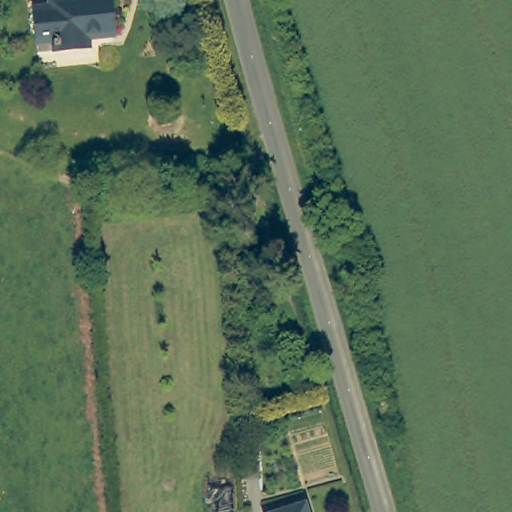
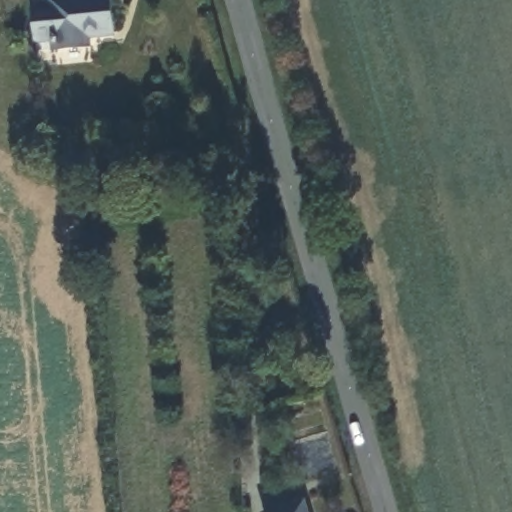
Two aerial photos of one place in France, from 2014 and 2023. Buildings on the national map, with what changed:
unchanged [(34,4),(72,0),(111,0),(115,30),(90,33),(90,41),(52,45),(37,46),(36,28),(34,4)]
unchanged [(264,512),(301,501),(304,512),(264,512)]

